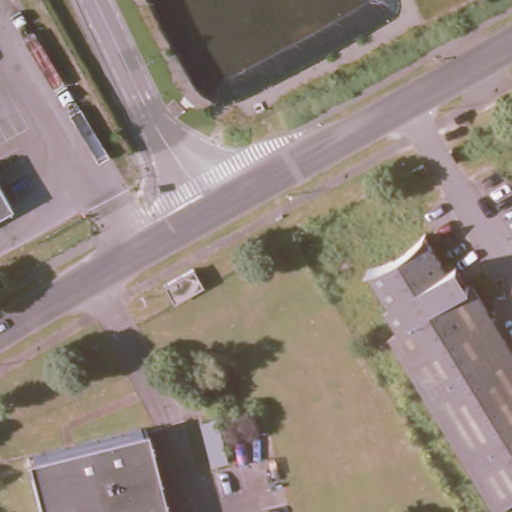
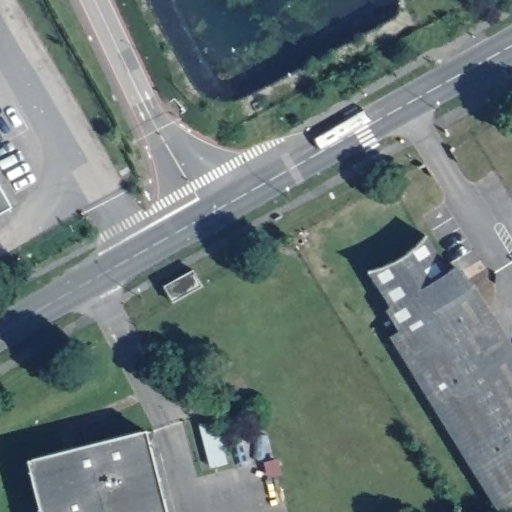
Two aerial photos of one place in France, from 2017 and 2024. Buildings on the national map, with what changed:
unchanged [(10,207),(0,213),(0,189),(10,207)]
unchanged [(401,330),(388,309),(392,306),(370,270),(375,270),(380,268),(384,266),(388,265),(392,262),(397,260),(401,257),(405,255),(409,252),(412,249),(415,246),(419,242),(421,240),(423,237),(446,273),(455,267),(468,288),(472,286),(512,351),(512,498),(497,507),(391,336),(401,330)]
unchanged [(167,300),(160,285),(190,268),(197,284),(167,300)]
unchanged [(217,420),(226,463),(206,468),(197,424),(217,420)]
unchanged [(141,433),(148,431),(169,512),(39,512),(26,462),(33,462),(32,458),(30,449),(57,442),(138,422),(141,433)]

